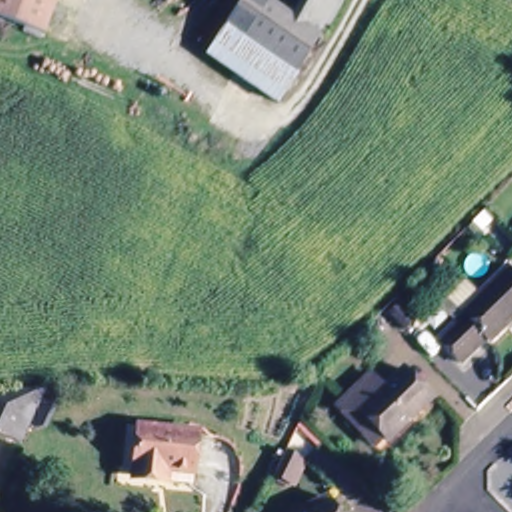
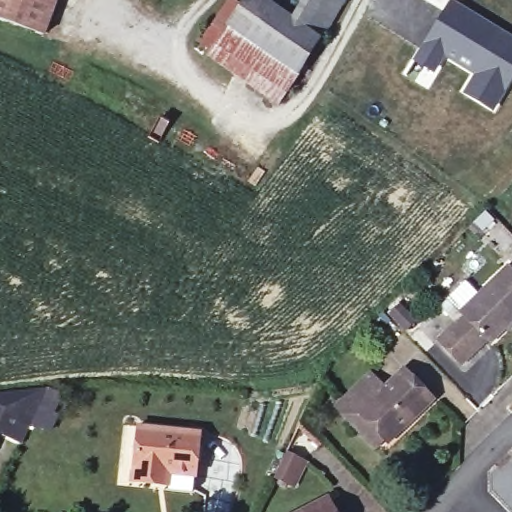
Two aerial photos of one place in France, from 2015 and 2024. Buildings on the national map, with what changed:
unchanged [(45,35),(0,18),(0,0),(57,0),(45,35)]
unchanged [(215,51),(217,47),(207,40),(233,0),(242,0),(246,3),(248,0),(276,0),(323,34),(283,99),(215,51)]
unchanged [(329,31),(326,29),(323,34),(297,15),(306,0),(346,0),(329,31)]
new [(412,60),(449,0),(456,0),(512,34),(512,82),(493,112),(461,92),(472,74),(447,59),(427,89),(412,78),(421,66),(412,60)]
unchanged [(512,316),(491,337),(488,334),(462,360),(438,335),(456,319),(440,302),(449,294),(448,293),(466,276),(479,290),(507,262),(512,267),(512,316)]
unchanged [(352,417),(337,402),(371,370),(384,384),(403,365),(432,395),(388,437),(372,421),(362,429),(352,417)]
unchanged [(26,386),(43,384),(43,385),(44,386),(46,384),(59,390),(44,424),(30,418),(22,434),(20,438),(0,429),(0,387),(26,386)]
unchanged [(160,484),(132,481),(139,427),(199,433),(194,476),(169,473),(167,485),(160,484)]
unchanged [(295,486),(275,476),(286,453),(306,463),(295,486)]
unchanged [(336,512),(291,512),(327,493),(336,512)]

